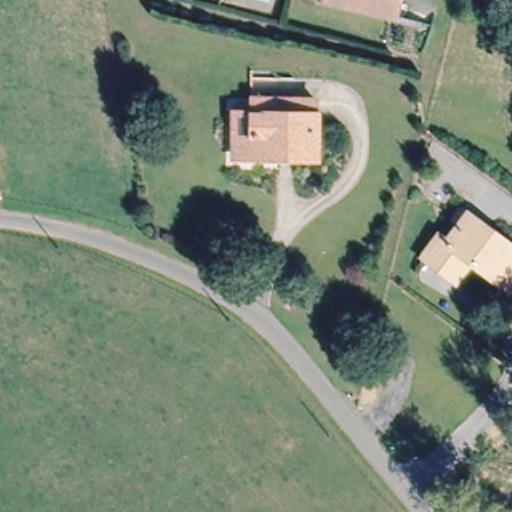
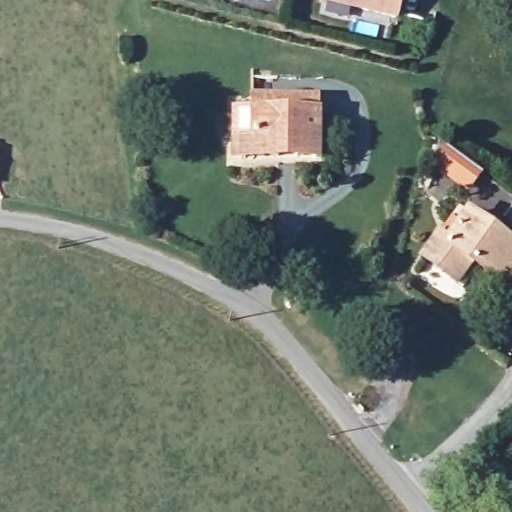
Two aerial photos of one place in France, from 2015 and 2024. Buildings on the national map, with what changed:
unchanged [(401,0),(397,15),(397,18),(326,0),(401,0)]
unchanged [(241,155),(241,113),(259,113),(258,97),(322,98),(322,156),(300,156),(284,155),(241,155)]
unchanged [(471,258),(459,274),(456,277),(449,272),(423,251),(440,229),(448,234),(459,220),(452,215),(462,202),(469,207),(512,239),(512,282),(509,287),(502,282),(471,258)]

